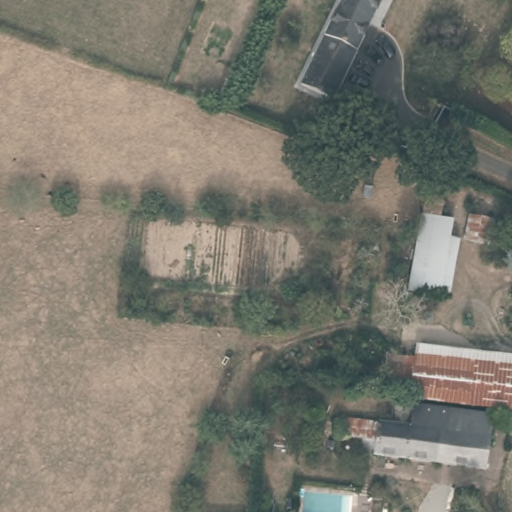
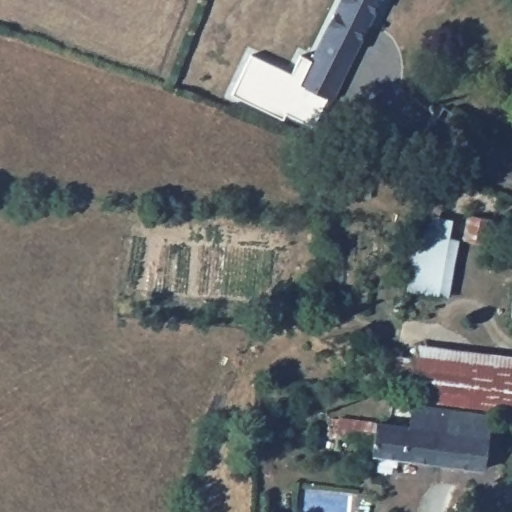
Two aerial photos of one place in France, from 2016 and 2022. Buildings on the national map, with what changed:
unchanged [(299,90),(339,0),(386,0),(336,106),(299,90)]
new [(250,53),(292,71),(302,53),(313,58),(299,90),(323,100),(312,125),(287,113),(283,120),(231,95),(250,53)]
unchanged [(440,207),(438,220),(452,221),(446,243),(458,244),(449,302),(405,293),(422,199),(440,207)]
unchanged [(494,220),(488,247),(463,243),(467,215),(494,220)]
unchanged [(509,315),(509,297),(512,298),(512,316),(509,315)]
unchanged [(382,394),(386,358),(413,359),(414,348),(512,361),(512,415),(382,394)]
unchanged [(429,469),(429,467),(356,460),(358,437),(334,435),(335,417),(374,421),(375,399),(401,402),(489,414),(480,476),(429,469)]

